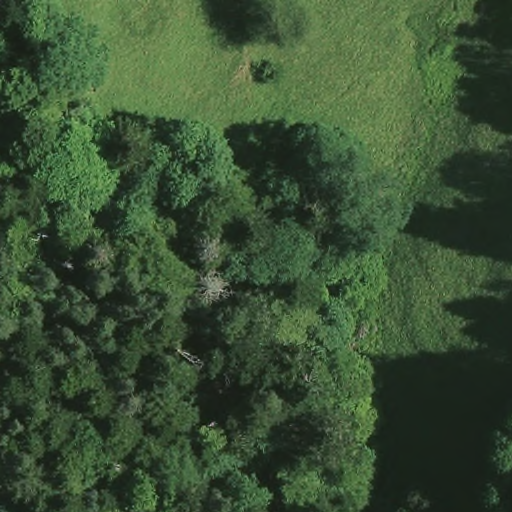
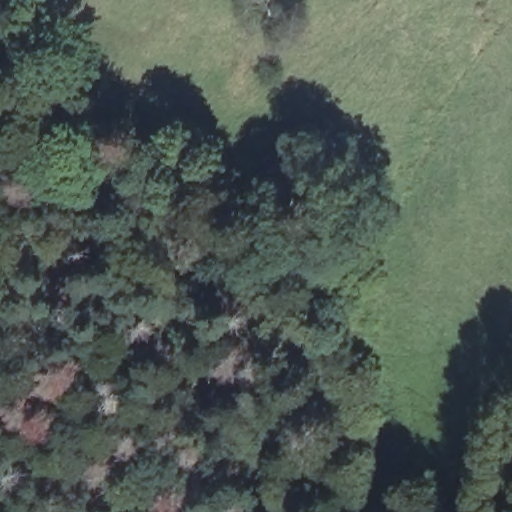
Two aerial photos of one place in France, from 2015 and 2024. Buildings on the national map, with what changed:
unchanged [(317,248),(342,238),(351,259),(325,270),(317,248)]

